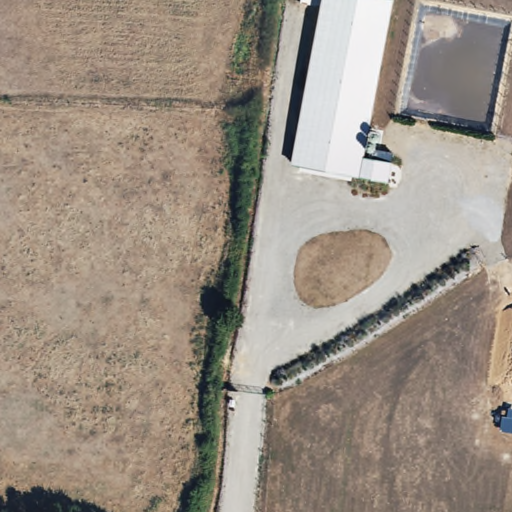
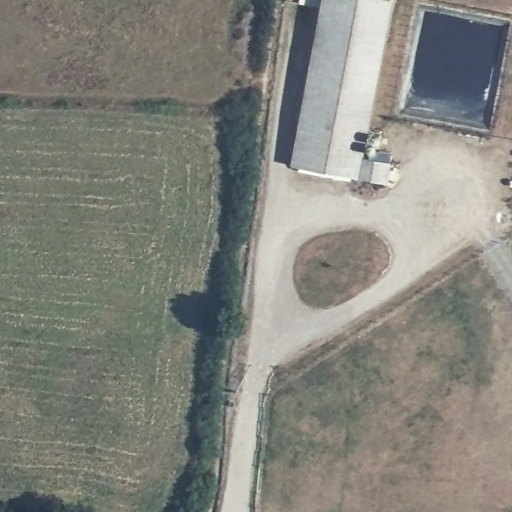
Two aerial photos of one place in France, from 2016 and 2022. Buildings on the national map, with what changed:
unchanged [(357,176),(291,165),(322,0),(392,0),(368,132),(377,134),(375,147),(393,152),(392,164),(389,182),(357,176)]

